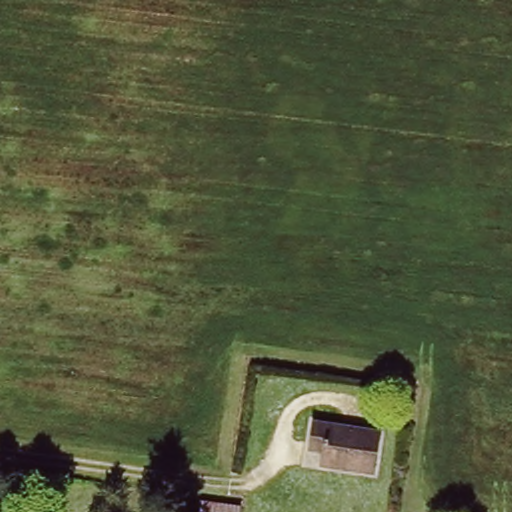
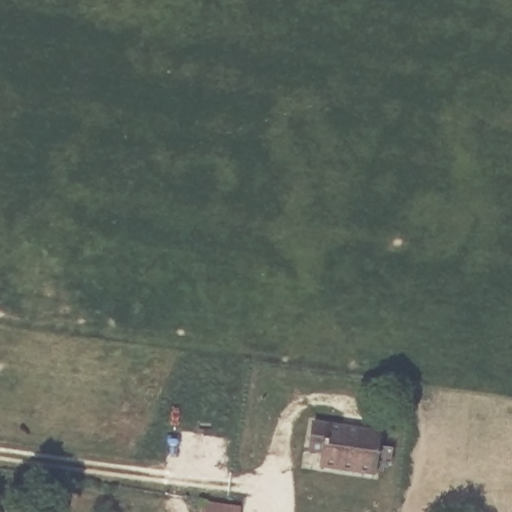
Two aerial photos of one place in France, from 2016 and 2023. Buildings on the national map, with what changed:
unchanged [(383,426),(377,470),(327,463),(329,451),(314,449),(318,418),(383,426)]

